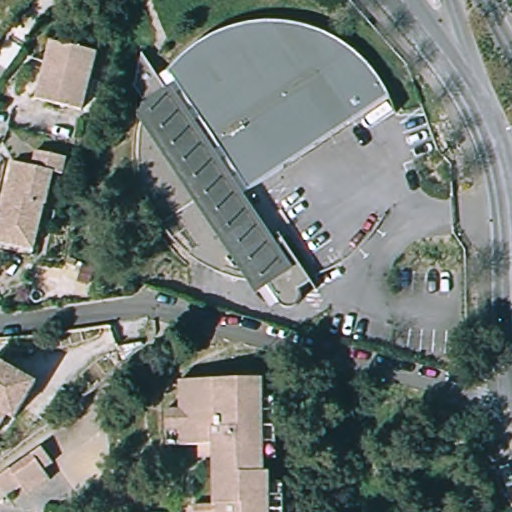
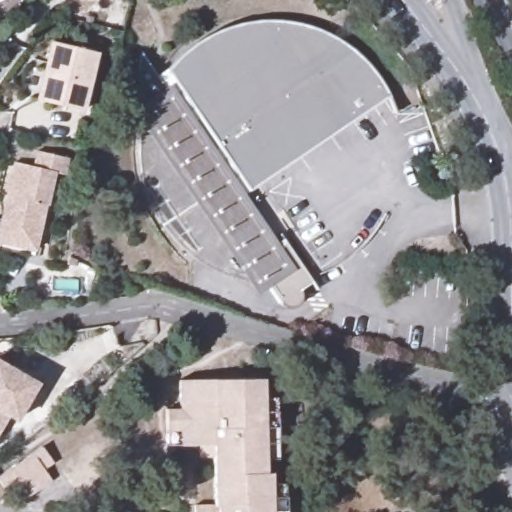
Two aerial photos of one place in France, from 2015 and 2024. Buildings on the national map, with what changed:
unchanged [(176,59),(185,50),(193,44),(203,37),(213,32),(224,27),(235,24),(246,21),(257,20),(269,20),(280,20),(292,21),(303,24),(314,27),(325,31),(335,37),(345,43),(354,50),(362,58),(370,66),(377,75),(383,85),(388,95),(250,187),(168,67),(176,59)]
unchanged [(52,42),(97,53),(83,112),(37,100),(52,42)]
unchanged [(282,238),(312,281),(300,288),(302,291),(302,295),(300,298),(298,301),(296,304),(292,305),(289,306),(285,305),(282,304),(279,301),(268,285),(256,293),(247,280),(236,276),(225,273),(215,268),(204,262),(195,256),(185,249),(177,241),(170,232),(162,223),(157,213),(151,202),(147,192),(143,181),(141,170),(140,158),(140,146),(140,135),(142,123),(133,109),(145,100),(135,85),(142,50),(166,86),(170,84),(277,242),(282,238)]
unchanged [(28,162),(32,146),(62,154),(58,171),(49,169),(42,201),(40,201),(30,247),(3,241),(0,241),(0,199),(10,157),(28,162)]
unchanged [(11,420),(2,415),(0,419),(0,366),(32,385),(11,420)]
unchanged [(214,506),(212,446),(180,446),(167,447),(167,432),(166,410),(180,410),(179,381),(264,379),(266,473),(284,473),(285,512),(193,512),(193,506),(214,506)]
unchanged [(0,474),(37,447),(50,463),(40,471),(42,473),(18,490),(17,487),(3,496),(0,491),(0,474)]

